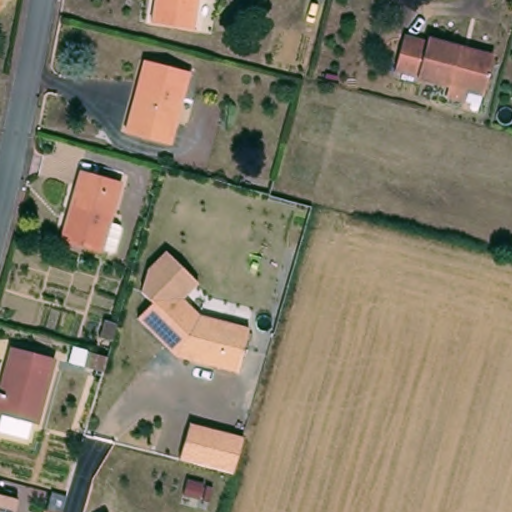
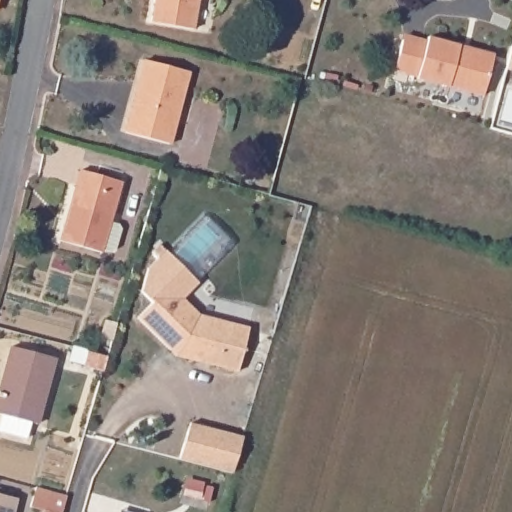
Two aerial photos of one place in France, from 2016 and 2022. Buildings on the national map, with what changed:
unchanged [(2,0),(0,16),(0,0),(2,0)]
unchanged [(406,40),(427,43),(428,39),(461,47),(460,54),(492,62),(485,96),(466,90),(463,100),(450,95),(452,87),(398,71),(406,40)]
unchanged [(149,61),(193,74),(171,144),(126,131),(149,61)]
unchanged [(78,170),(119,180),(109,219),(120,223),(114,249),(101,246),(100,251),(60,241),(78,170)]
unchanged [(198,282),(181,299),(197,314),(249,326),(236,373),(175,357),(134,318),(150,302),(139,291),(147,267),(165,250),(198,282)]
unchanged [(95,345),(100,327),(115,331),(109,348),(95,345)]
unchanged [(6,390),(0,388),(0,384),(0,382),(12,385),(15,371),(10,370),(14,352),(9,351),(12,340),(62,352),(45,418),(38,417),(34,432),(5,425),(9,409),(2,407),(6,390)]
unchanged [(80,375),(84,360),(104,365),(100,380),(80,375)]
unchanged [(241,436),(231,473),(178,458),(187,422),(241,436)]
unchanged [(23,497),(19,512),(0,512),(0,491),(23,497)]
unchanged [(65,500),(61,512),(46,512),(50,497),(65,500)]

